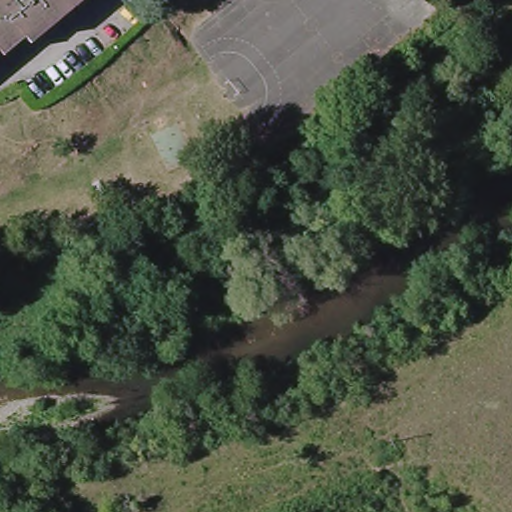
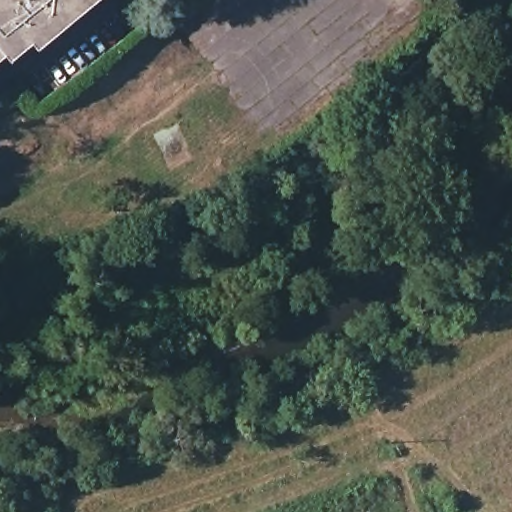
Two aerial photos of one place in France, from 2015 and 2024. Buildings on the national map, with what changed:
unchanged [(0,28),(0,0),(29,0),(0,28)]
unchanged [(40,38),(30,28),(0,55),(0,28),(29,0),(80,0),(40,38)]

